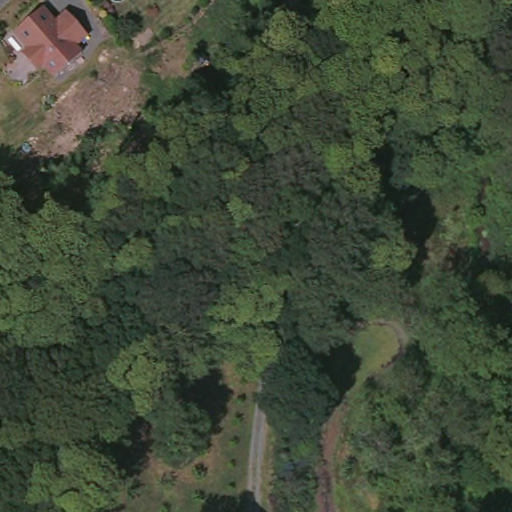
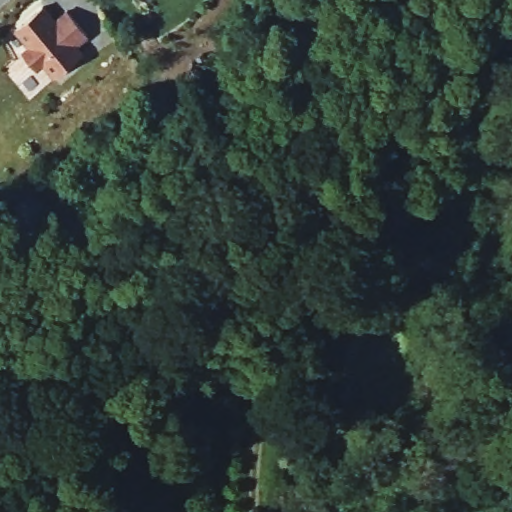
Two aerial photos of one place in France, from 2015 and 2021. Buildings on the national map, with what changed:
unchanged [(52,20),(65,10),(83,34),(70,44),(77,52),(49,74),(38,60),(31,65),(17,48),(25,42),(12,25),(40,4),(52,20)]

